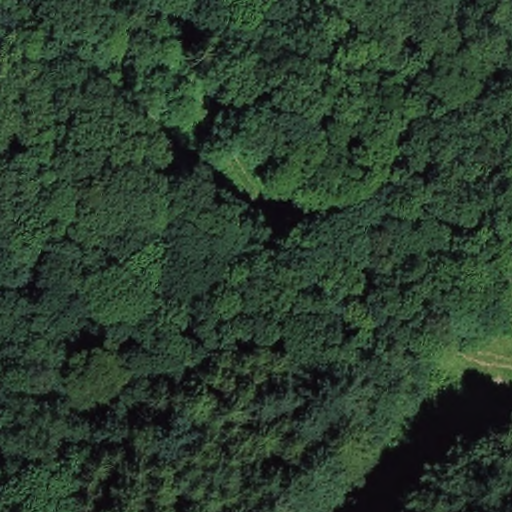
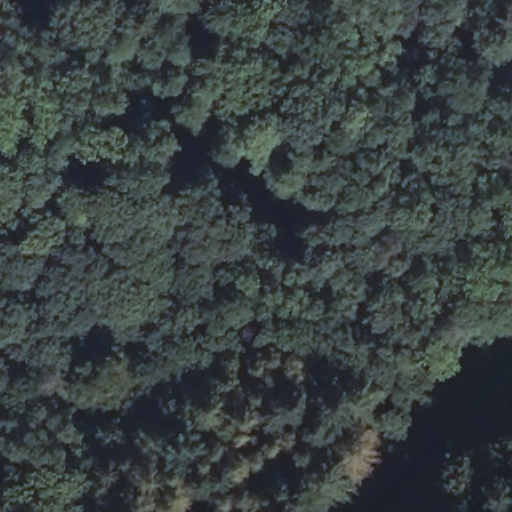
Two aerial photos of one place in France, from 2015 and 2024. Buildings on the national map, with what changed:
unchanged [(162,275),(180,257),(197,274),(179,292),(162,275)]

